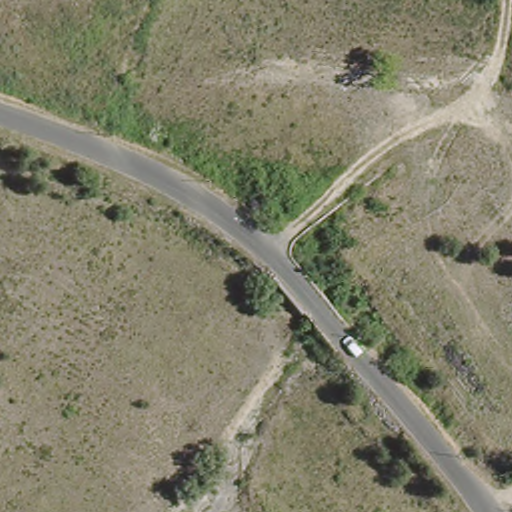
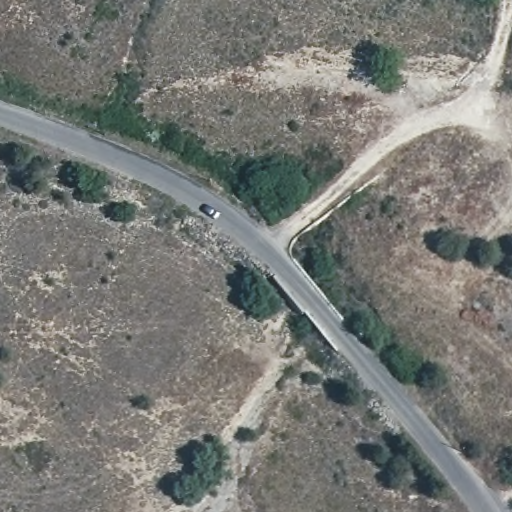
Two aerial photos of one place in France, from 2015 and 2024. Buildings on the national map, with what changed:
[]

